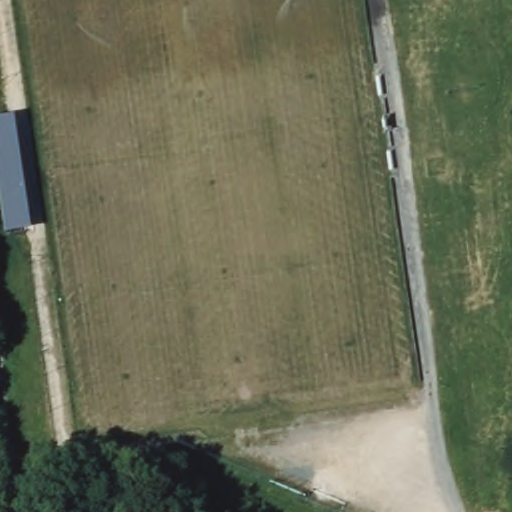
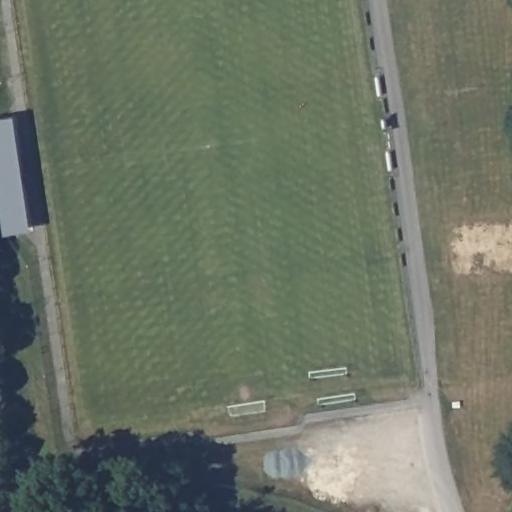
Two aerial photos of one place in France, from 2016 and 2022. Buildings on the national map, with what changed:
unchanged [(0,212),(0,117),(14,115),(31,230),(4,236),(0,212)]

